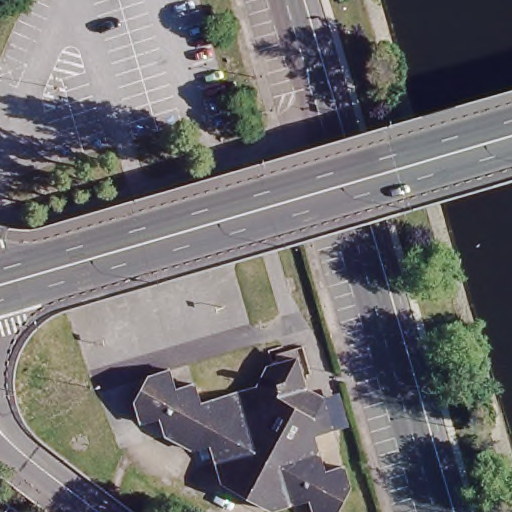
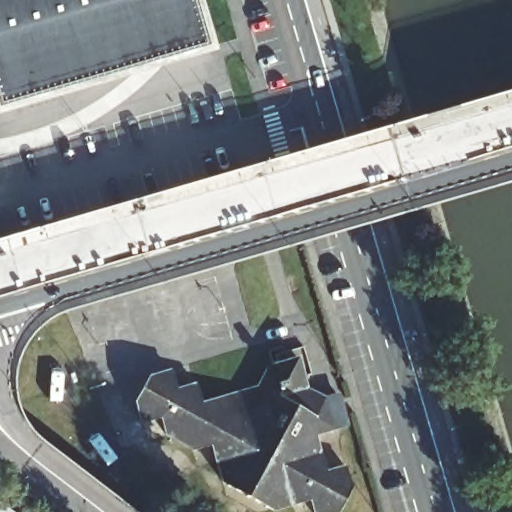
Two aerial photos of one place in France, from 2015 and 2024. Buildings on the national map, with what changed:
new [(203,37),(0,94),(0,0),(193,0),(203,37)]
unchanged [(176,384),(194,380),(201,397),(255,382),(268,360),(299,350),(309,380),(305,388),(326,400),(334,427),(317,431),(329,466),(344,462),(346,466),(351,484),(349,488),(337,506),(315,512),(309,496),(266,507),(226,485),(213,441),(196,447),(167,431),(161,410),(139,415),(133,396),(147,370),(170,365),(176,384)]

